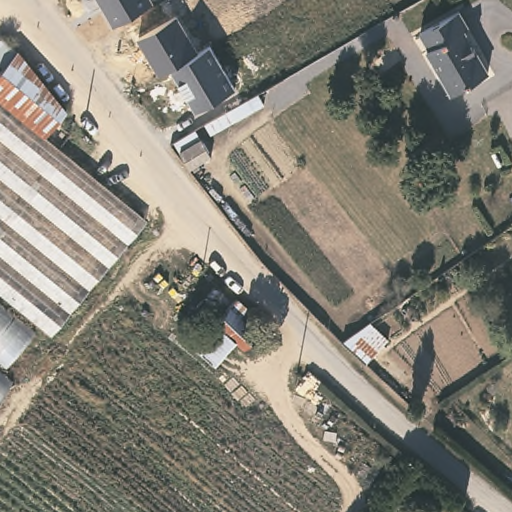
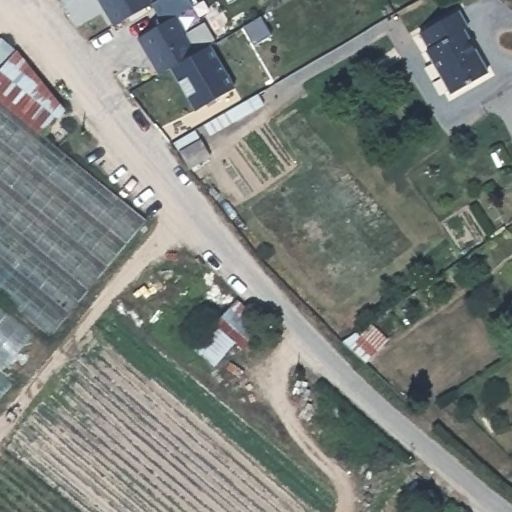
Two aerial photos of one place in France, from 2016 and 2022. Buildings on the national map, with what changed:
unchanged [(115,27),(99,0),(151,0),(153,3),(115,27)]
unchanged [(468,27),(465,30),(486,72),(448,92),(424,47),(427,46),(420,29),(459,10),(468,27)]
unchanged [(195,112),(170,69),(159,76),(138,39),(177,17),(201,52),(211,47),(235,89),(195,112)]
unchanged [(7,47),(61,108),(42,133),(0,99),(0,40),(7,47)]
unchanged [(42,133),(144,215),(49,331),(48,332),(0,294),(0,99),(42,133)]
unchanged [(48,332),(0,394),(0,294),(48,332)]
unchanged [(230,302),(266,333),(250,350),(235,341),(215,361),(190,342),(230,302)]
unchanged [(387,341),(365,366),(343,346),(367,322),(387,341)]

